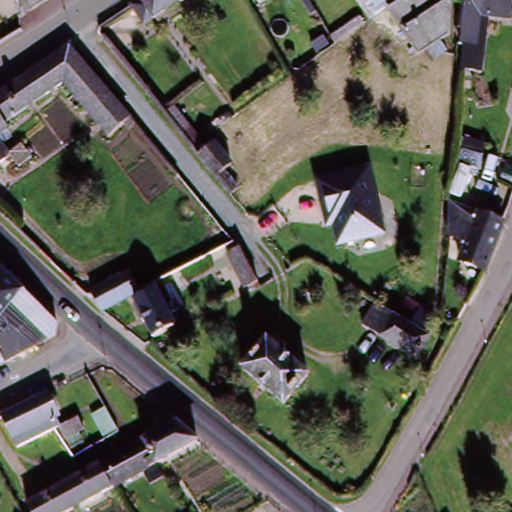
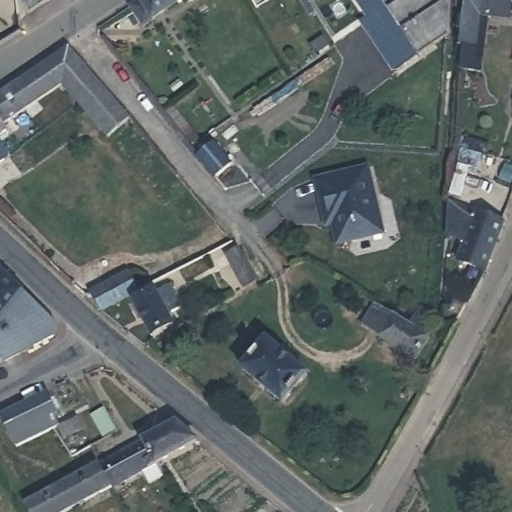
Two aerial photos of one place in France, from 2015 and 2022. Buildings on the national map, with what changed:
unchanged [(27,19),(21,0),(54,0),(27,19)]
unchanged [(146,24),(138,12),(132,1),(133,0),(184,0),(146,24)]
unchanged [(381,0),(453,0),(452,31),(440,39),(445,47),(429,59),(423,50),(415,55),(410,59),(405,50),(410,47),(387,10),(381,0)]
unchanged [(457,47),(460,4),(461,0),(509,0),(512,0),(512,22),(486,18),(482,48),(457,47)]
unchanged [(70,44),(107,91),(85,110),(65,84),(4,126),(7,130),(0,134),(0,90),(70,44)]
unchanged [(107,91),(130,117),(105,136),(85,110),(107,91)]
unchanged [(240,194),(229,203),(199,165),(192,155),(195,153),(215,139),(224,151),(237,172),(229,177),(240,194)]
unchanged [(5,158),(3,166),(0,168),(0,149),(5,158)]
unchanged [(376,166),(395,234),(346,246),(335,206),(327,209),(321,181),(376,166)]
unchanged [(476,235),(454,225),(455,216),(457,196),(512,219),(487,264),(469,254),(476,235)]
unchanged [(236,292),(232,287),(236,285),(222,258),(235,250),(254,282),(236,292)]
unchanged [(2,260),(63,319),(65,331),(8,362),(0,366),(0,262),(2,260)]
unchanged [(120,276),(135,267),(144,281),(147,287),(131,296),(120,276)]
unchanged [(100,287),(116,278),(127,298),(112,305),(105,301),(100,287)]
unchanged [(142,298),(160,288),(178,322),(160,332),(142,298)]
unchanged [(416,369),(360,335),(374,313),(391,323),(403,304),(432,321),(420,341),(430,346),(416,369)]
unchanged [(283,407),(240,373),(264,343),(307,377),(283,407)]
unchanged [(42,389),(52,407),(47,410),(54,424),(36,434),(14,448),(0,422),(0,409),(35,393),(42,389)]
unchanged [(118,434),(107,440),(94,417),(105,410),(118,434)]
unchanged [(80,430),(62,440),(54,424),(70,413),(80,430)]
unchanged [(173,428),(192,443),(106,492),(90,501),(73,511),(70,512),(25,512),(62,491),(80,481),(95,473),(173,428)]

